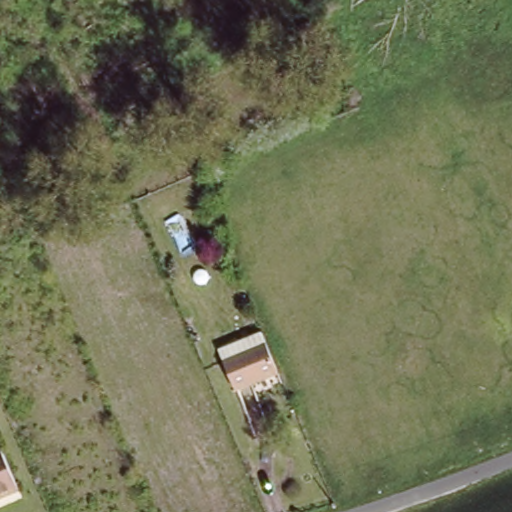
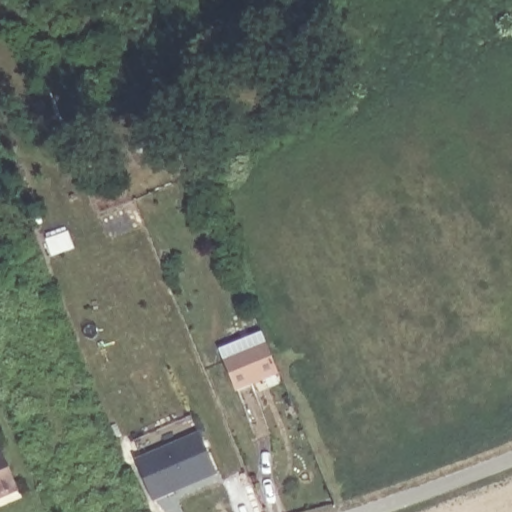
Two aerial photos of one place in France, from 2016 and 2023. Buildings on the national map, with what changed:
unchanged [(238,389),(229,362),(225,349),(264,333),(270,347),(280,374),(238,389)]
new [(135,460),(198,433),(217,474),(152,501),(135,460)]
unchanged [(22,489),(0,498),(0,454),(5,452),(22,489)]

